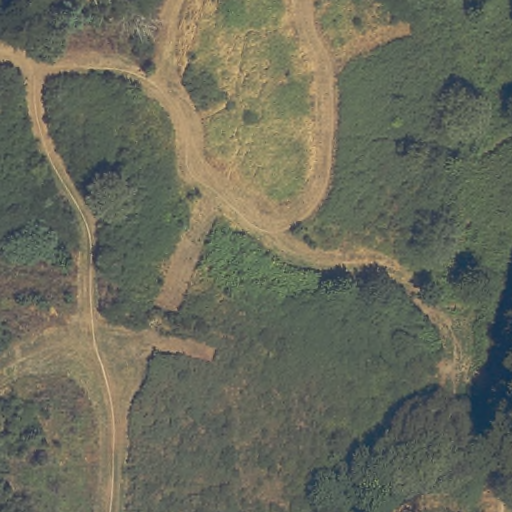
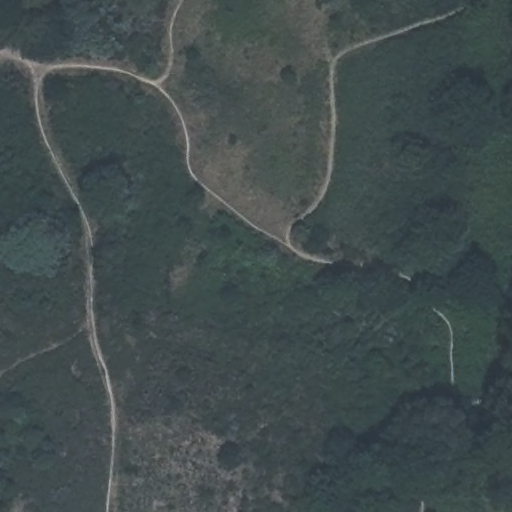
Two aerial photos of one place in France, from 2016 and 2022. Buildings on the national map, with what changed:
[]

